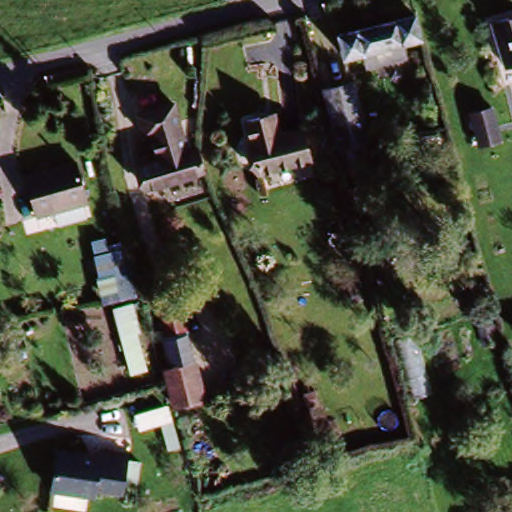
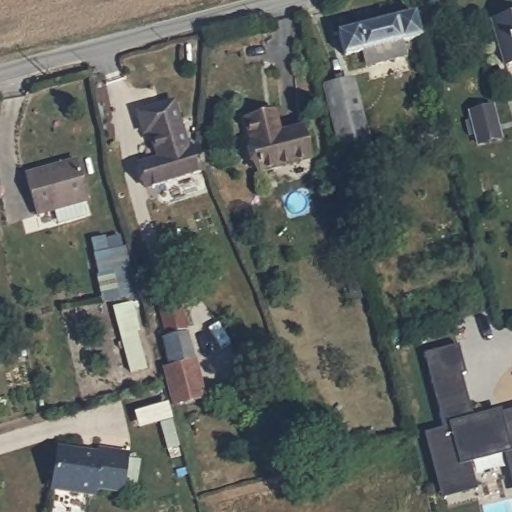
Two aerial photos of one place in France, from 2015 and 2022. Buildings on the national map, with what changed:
unchanged [(367,64),(363,51),(345,55),(339,32),(415,13),(422,36),(402,41),(406,55),(367,64)]
unchanged [(510,17),(512,16),(512,59),(504,61),(492,17),(509,13),(510,17)]
unchanged [(350,177),(345,157),(329,97),(355,91),(370,151),(375,170),(350,177)]
unchanged [(162,164),(155,136),(148,139),(142,117),(177,106),(192,155),(173,160),(162,164)]
unchanged [(482,148),(480,142),(473,117),(495,112),(502,136),(503,142),(482,148)]
unchanged [(310,164),(259,176),(250,145),(245,125),(273,116),(279,138),(302,132),(310,164)]
unchanged [(157,191),(151,194),(143,169),(162,164),(173,160),(192,155),(202,152),(209,175),(157,191)]
unchanged [(92,206),(41,220),(30,180),(80,165),(92,206)]
unchanged [(91,242),(126,245),(138,297),(108,300),(91,242)]
unchanged [(180,370),(168,314),(188,309),(213,402),(184,410),(174,372),(180,370)]
new [(461,372),(473,415),(500,409),(501,412),(512,410),(512,474),(505,450),(470,460),(477,487),(445,495),(427,432),(445,427),(426,353),(459,345),(465,371),(461,372)]
unchanged [(98,444),(126,448),(120,488),(94,484),(93,490),(51,484),(50,484),(57,443),(97,449),(98,444)]

